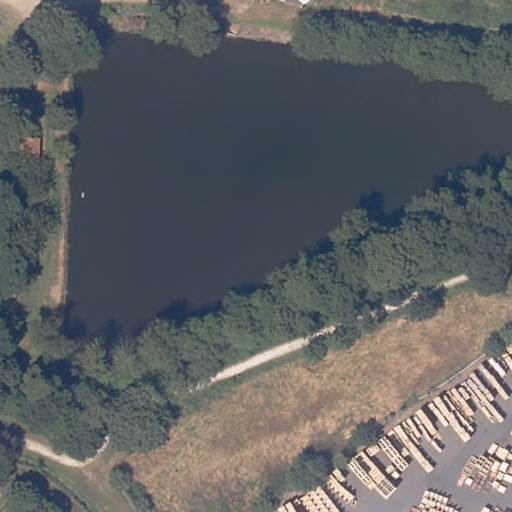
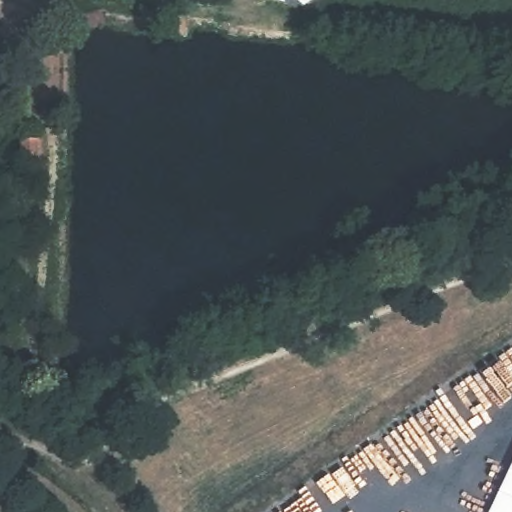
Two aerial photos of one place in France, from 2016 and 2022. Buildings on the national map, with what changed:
unchanged [(319,1),(307,9),(303,8),(267,1),(266,0),(318,0),(319,1)]
unchanged [(19,162),(20,140),(39,142),(38,163),(19,162)]
new [(489,512),(512,462),(512,512),(489,512)]

